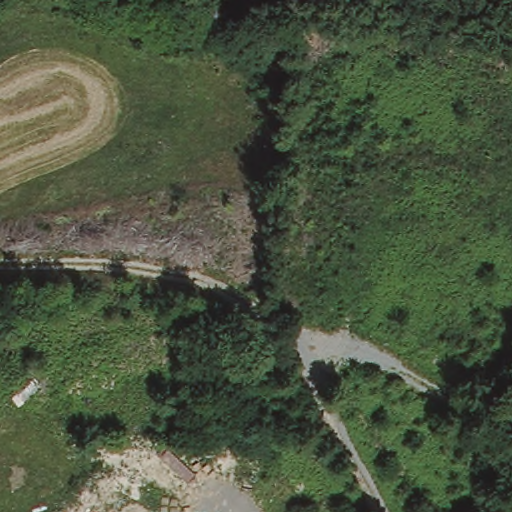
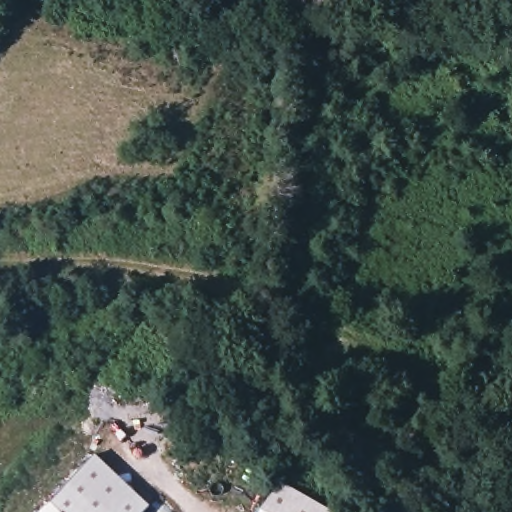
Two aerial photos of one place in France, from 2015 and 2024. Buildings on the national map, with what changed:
new [(148,505),(141,512),(38,512),(93,454),(148,505)]
new [(337,512),(259,512),(278,478),(337,512)]

